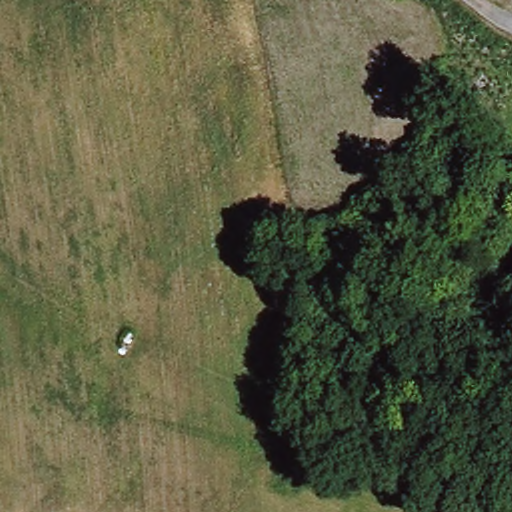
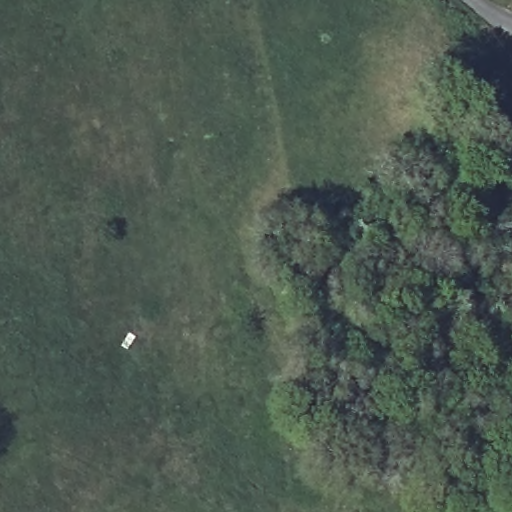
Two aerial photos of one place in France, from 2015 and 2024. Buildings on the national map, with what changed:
[]

